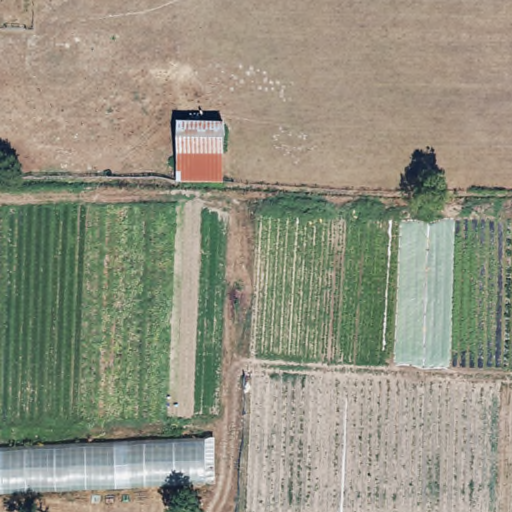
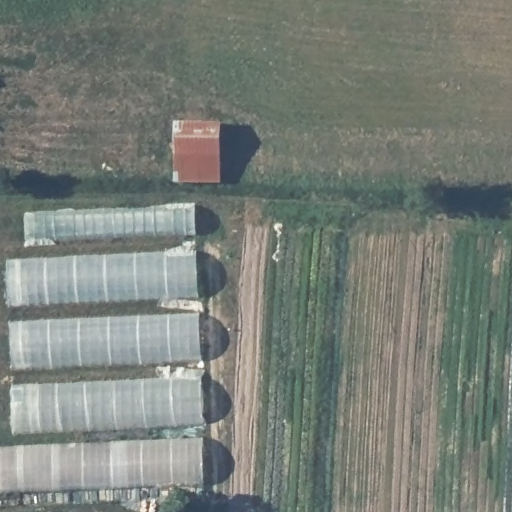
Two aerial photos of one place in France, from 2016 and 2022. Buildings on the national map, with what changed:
unchanged [(224,122),(224,178),(178,178),(178,124),(224,122)]
new [(26,216),(197,209),(197,236),(27,242),(26,216)]
new [(7,262),(197,254),(200,300),(10,306),(7,262)]
new [(11,325),(201,317),(203,361),(13,369),(11,325)]
new [(11,388),(202,380),(206,423),(12,435),(11,388)]
unchanged [(0,495),(0,449),(214,440),(214,487),(0,495)]

